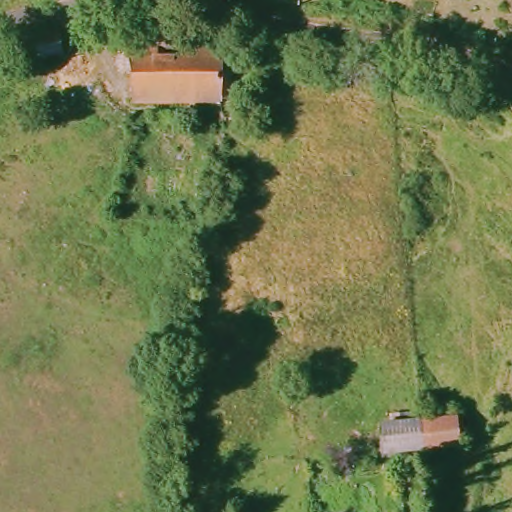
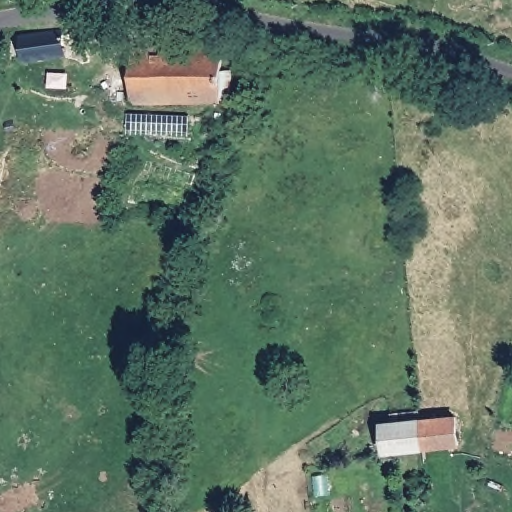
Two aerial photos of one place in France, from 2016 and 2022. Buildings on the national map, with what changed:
unchanged [(83,34),(84,59),(41,61),(40,37),(83,34)]
unchanged [(129,111),(133,68),(138,68),(140,49),(162,52),(161,70),(178,70),(180,54),(225,57),(219,118),(129,111)]
unchanged [(384,426),(419,420),(449,416),(454,443),(424,448),(388,453),(384,426)]

